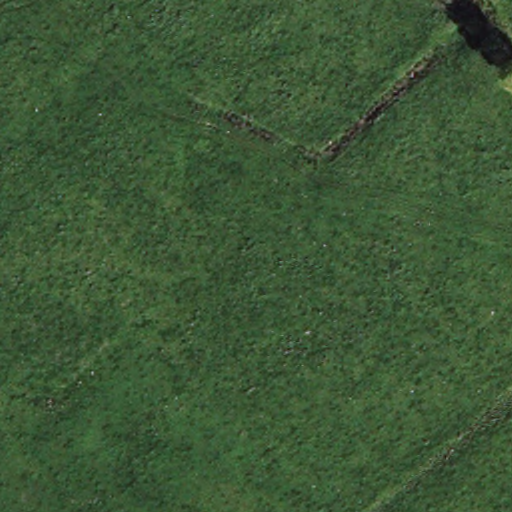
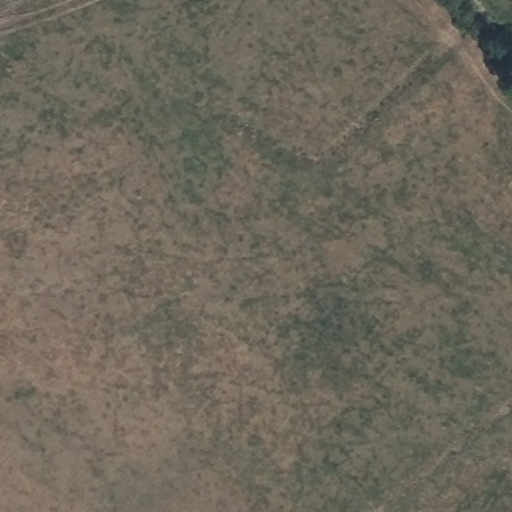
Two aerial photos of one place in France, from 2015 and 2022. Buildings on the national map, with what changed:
[]

